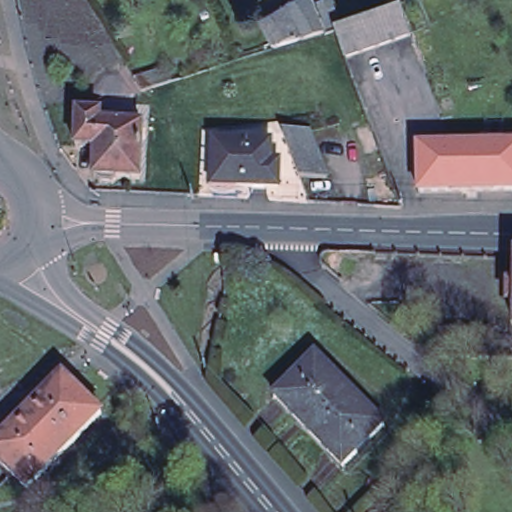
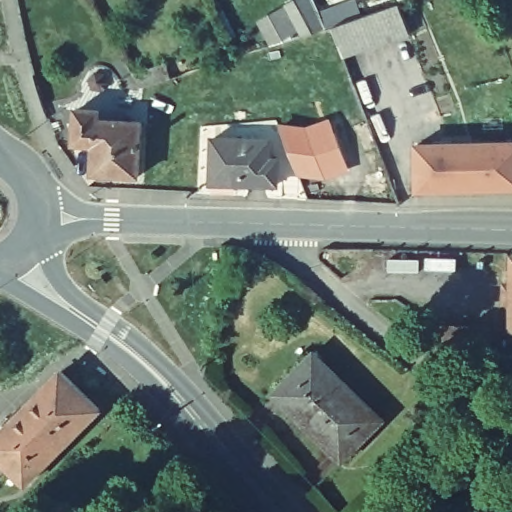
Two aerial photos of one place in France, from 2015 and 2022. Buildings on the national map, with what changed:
unchanged [(287,5),(297,0),(310,0),(322,27),(302,36),(287,5)]
unchanged [(365,52),(349,58),(337,27),(329,30),(317,4),(325,0),(333,0),(343,25),(354,21),(369,15),(385,9),(400,2),(413,33),(396,40),(381,46),(365,52)]
unchanged [(265,27),(262,21),(282,10),(285,16),(298,40),(276,47),(265,27)]
unchanged [(145,87),(140,88),(132,76),(165,65),(170,79),(145,87)]
unchanged [(117,175),(112,179),(97,178),(92,170),(93,146),(74,145),(75,111),(100,112),(100,120),(142,122),(139,176),(117,175)]
unchanged [(282,126),(310,127),(328,174),(300,174),(282,126)]
unchanged [(420,137),(512,137),(512,182),(420,182),(420,137)]
unchanged [(212,139),(270,140),(269,160),(275,160),(275,187),(211,185),(212,139)]
unchanged [(512,281),(512,298),(511,298),(512,281)]
unchanged [(487,332),(487,361),(435,360),(435,331),(487,332)]
unchanged [(312,350),(380,417),(340,461),(272,393),(312,350)]
unchanged [(101,413),(27,487),(0,461),(0,437),(4,433),(20,417),(62,375),(96,407),(101,413)]
unchanged [(371,512),(379,506),(384,512),(371,512)]

